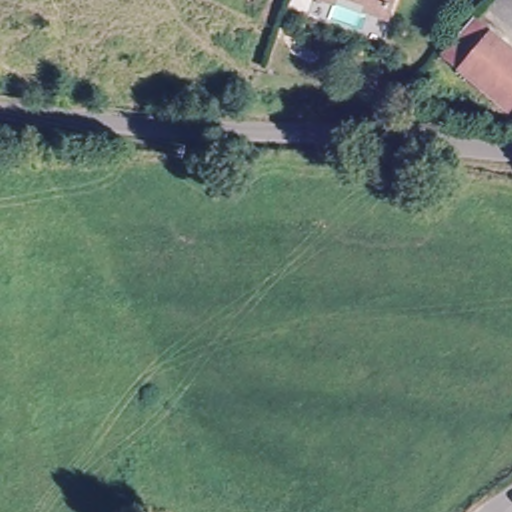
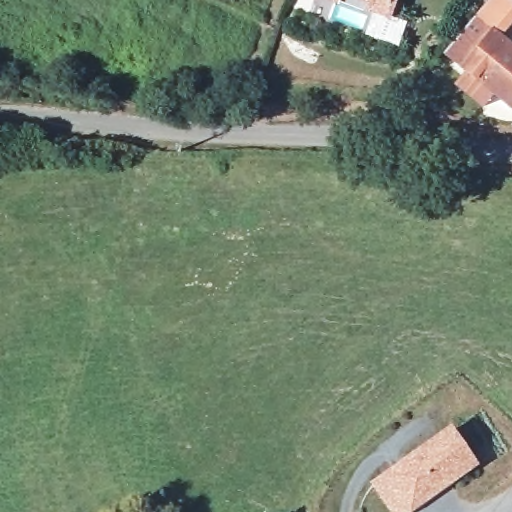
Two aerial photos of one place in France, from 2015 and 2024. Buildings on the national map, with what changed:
unchanged [(368,4),(370,0),(393,0),(389,12),(368,4)]
unchanged [(444,63),(478,19),(512,49),(512,102),(504,112),(444,63)]
new [(449,427),(477,466),(406,512),(390,512),(368,484),(449,427)]

